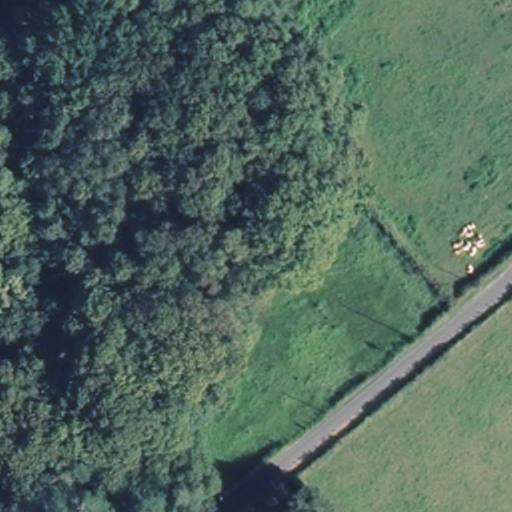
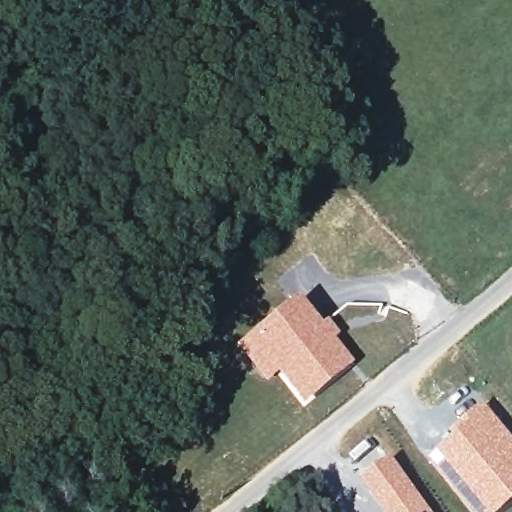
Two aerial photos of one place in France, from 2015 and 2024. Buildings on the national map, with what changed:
new [(297,297),(322,323),(327,320),(340,336),(335,340),(353,363),(302,406),(276,376),(265,384),(235,348),(297,297)]
new [(445,460),(437,451),(455,433),(452,431),(485,402),(512,434),(512,502),(500,512),(474,512),(437,466),(445,460)]
new [(393,457),(433,512),(383,512),(360,480),(393,457)]

